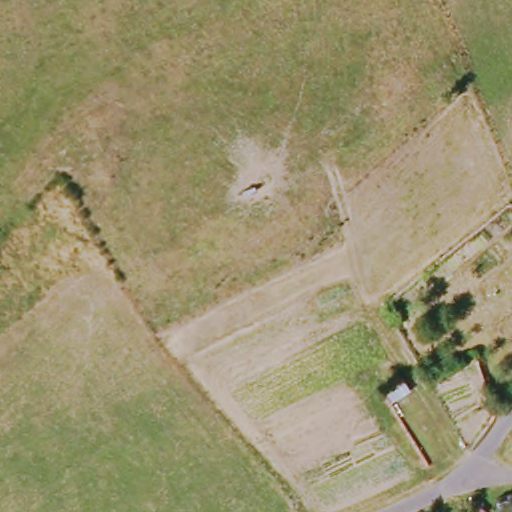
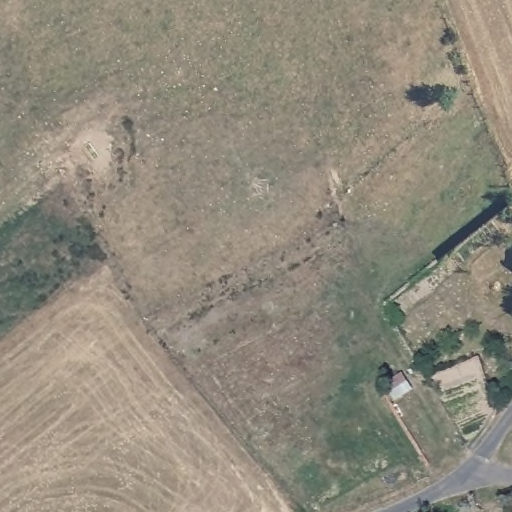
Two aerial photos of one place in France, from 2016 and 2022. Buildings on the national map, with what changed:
unchanged [(512,498),(512,512),(478,512),(476,503),(512,498)]

